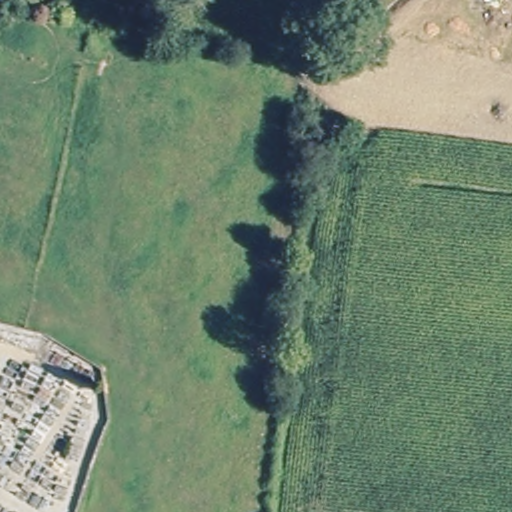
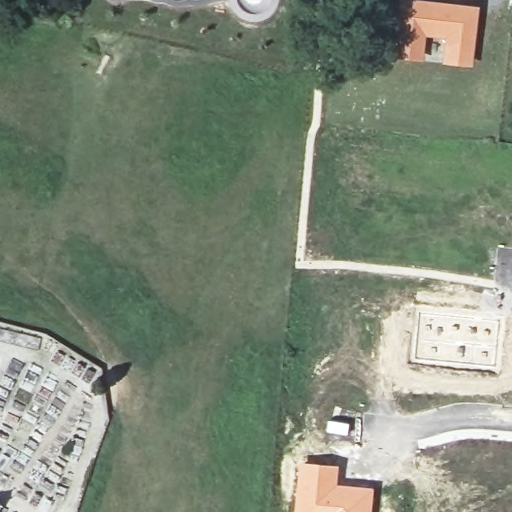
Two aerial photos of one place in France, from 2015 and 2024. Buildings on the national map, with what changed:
new [(445,39),(424,36),(421,60),(392,57),(399,0),(420,0),(477,7),(472,65),(443,62),(445,39)]
new [(415,359),(419,313),(499,320),(495,366),(415,359)]
new [(298,462),(338,466),(337,483),(373,487),(371,512),(294,512),(298,462)]

